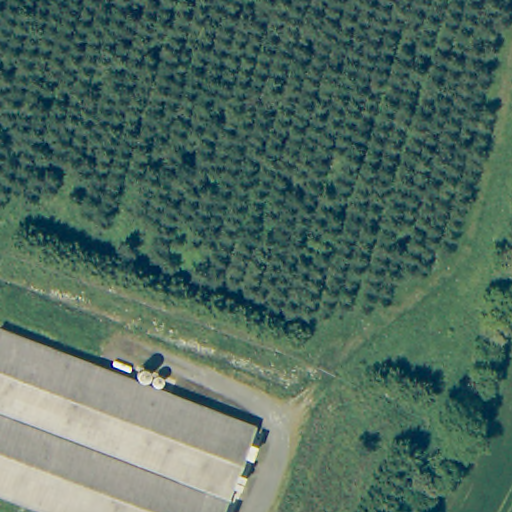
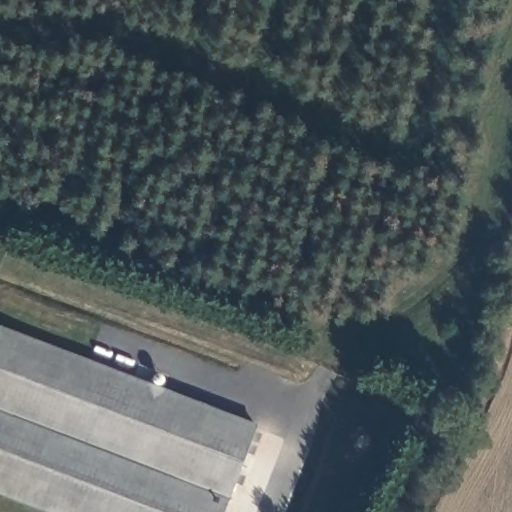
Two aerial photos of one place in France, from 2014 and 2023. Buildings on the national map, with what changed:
unchanged [(258,429),(253,443),(258,444),(253,457),(248,454),(241,472),(246,474),(241,486),(237,484),(226,512),(58,512),(0,490),(0,329),(258,429)]

